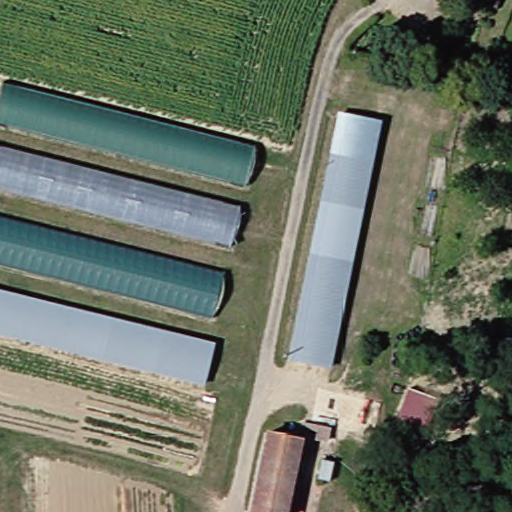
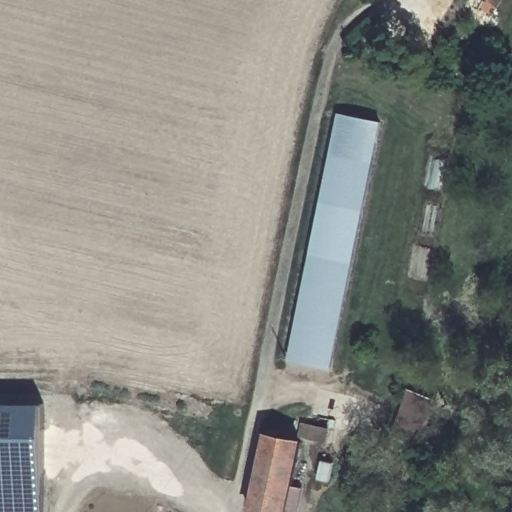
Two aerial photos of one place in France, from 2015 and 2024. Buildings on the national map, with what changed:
demolished [(262,146),(251,186),(0,122),(0,95),(4,80),(262,146)]
unchanged [(382,126),(330,369),(290,360),(338,117),(382,126)]
demolished [(243,205),(236,245),(0,186),(0,144),(243,205)]
demolished [(209,313),(0,261),(0,214),(222,270),(209,313)]
demolished [(216,345),(207,385),(0,331),(0,288),(216,345)]
new [(33,400),(35,509),(0,510),(0,401),(33,400)]
unchanged [(327,426),(326,434),(313,431),(315,423),(327,426)]
unchanged [(293,512),(259,512),(277,433),(308,441),(293,512)]

